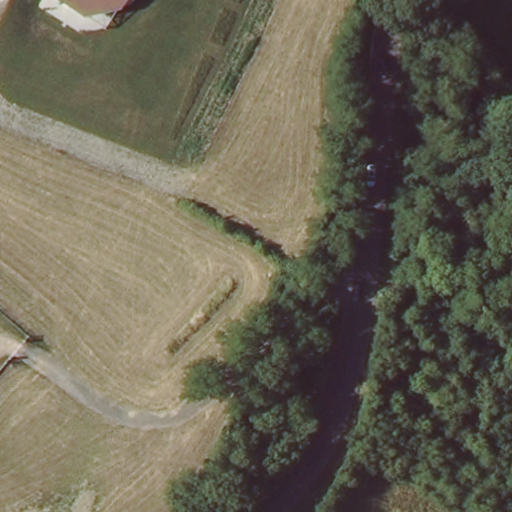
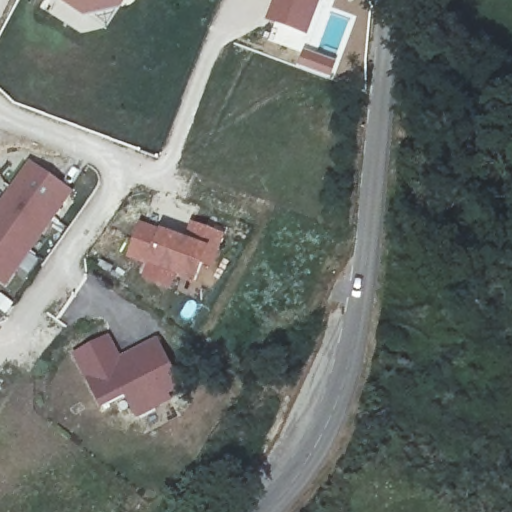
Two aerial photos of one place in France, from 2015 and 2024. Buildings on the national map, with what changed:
unchanged [(122,10),(85,16),(57,0),(129,0),(122,10)]
new [(278,0),(320,0),(308,33),(270,20),(278,0)]
new [(29,160),(74,191),(6,288),(0,284),(0,202),(29,160)]
new [(137,221),(185,238),(191,222),(225,235),(212,270),(203,267),(195,285),(175,277),(169,291),(140,280),(144,265),(127,259),(137,221)]
unchanged [(498,272),(507,238),(512,240),(512,276),(498,272)]
new [(110,335),(120,356),(158,337),(187,393),(136,419),(126,398),(102,410),(71,353),(110,335)]

